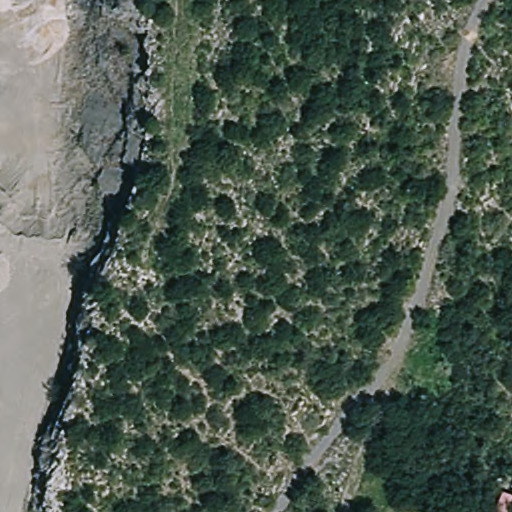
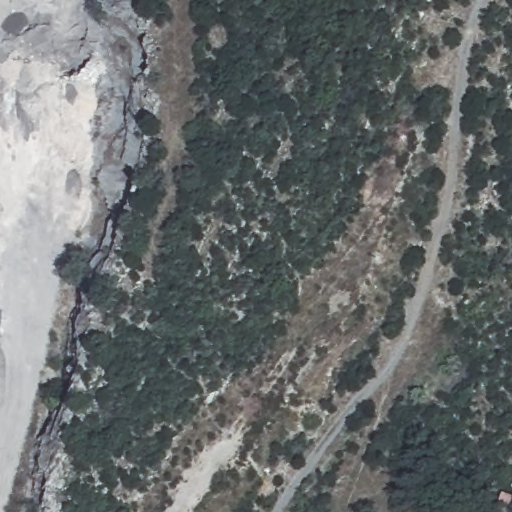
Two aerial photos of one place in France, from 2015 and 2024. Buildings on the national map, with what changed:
[]

